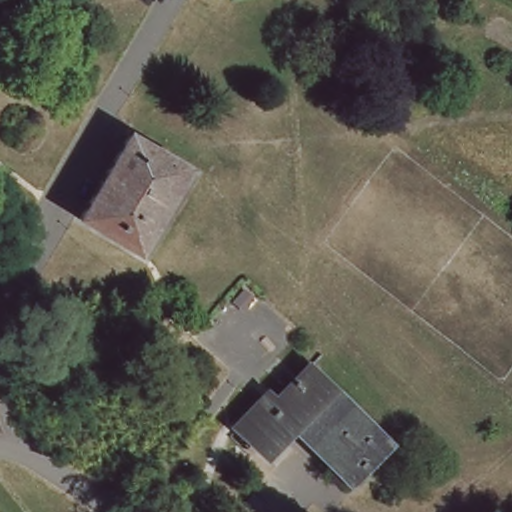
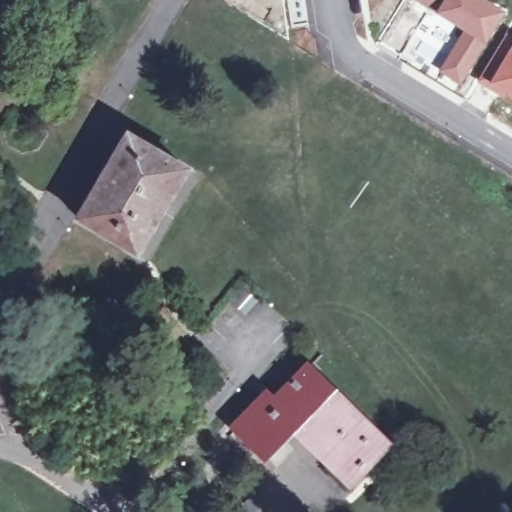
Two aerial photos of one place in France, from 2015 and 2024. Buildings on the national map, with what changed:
new [(485,45),(463,30),(415,0),(488,0),(507,11),(485,45)]
new [(463,30),(485,45),(458,85),(437,71),(463,30)]
new [(487,66),(490,68),(491,66),(494,68),(512,41),(512,98),(477,80),(487,66)]
unchanged [(190,167),(140,252),(85,215),(132,132),(190,167)]
unchanged [(266,394),(275,402),(311,364),(390,439),(353,479),(295,426),(268,456),(237,425),(266,394)]

